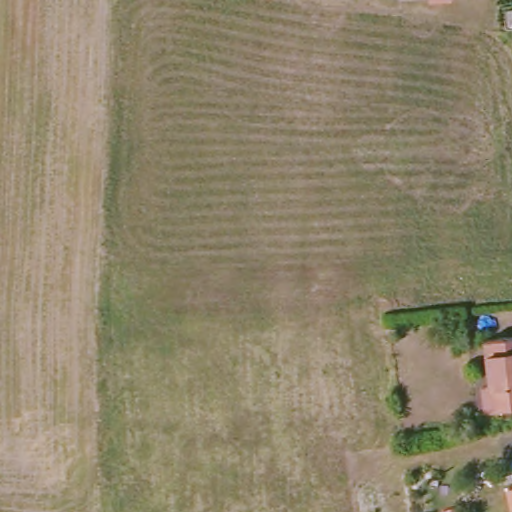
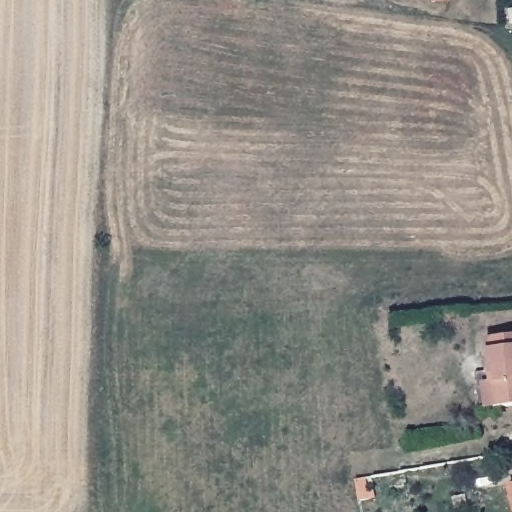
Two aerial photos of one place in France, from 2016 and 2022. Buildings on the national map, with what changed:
unchanged [(431,1),(431,0),(453,0),(431,1)]
unchanged [(505,25),(501,12),(512,10),(512,24),(505,25)]
unchanged [(477,373),(491,372),(489,338),(512,337),(512,409),(495,410),(480,411),(477,373)]
unchanged [(512,489),(512,512),(511,512),(506,490),(512,489)]

